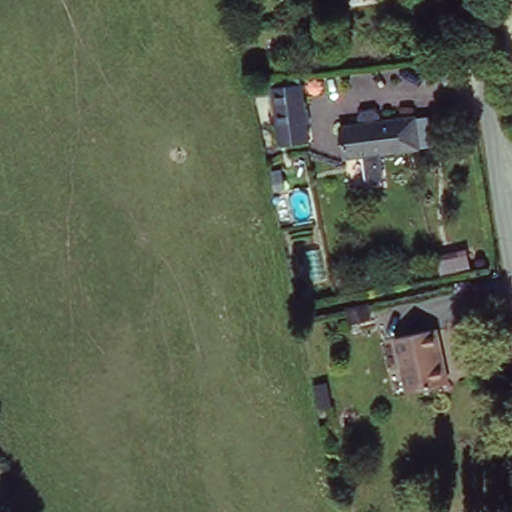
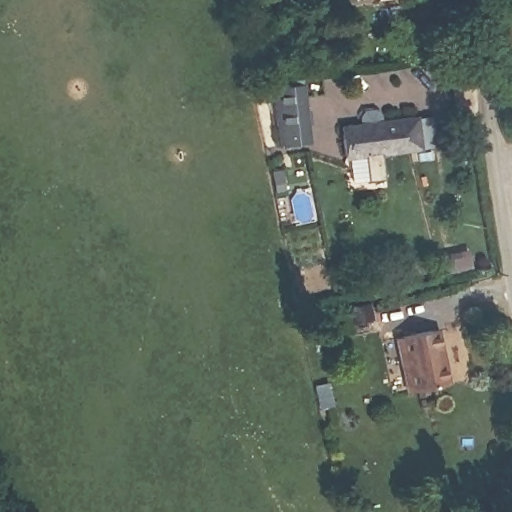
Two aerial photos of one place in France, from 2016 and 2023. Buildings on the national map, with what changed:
unchanged [(272,87),(300,83),(310,143),(281,147),(272,87)]
unchanged [(343,125),(415,115),(420,148),(349,157),(343,125)]
unchanged [(362,304),(365,316),(343,321),(341,308),(362,304)]
unchanged [(394,339),(437,331),(450,386),(408,394),(394,339)]

